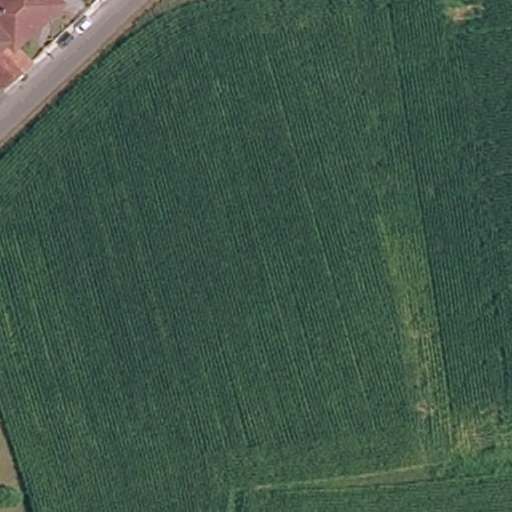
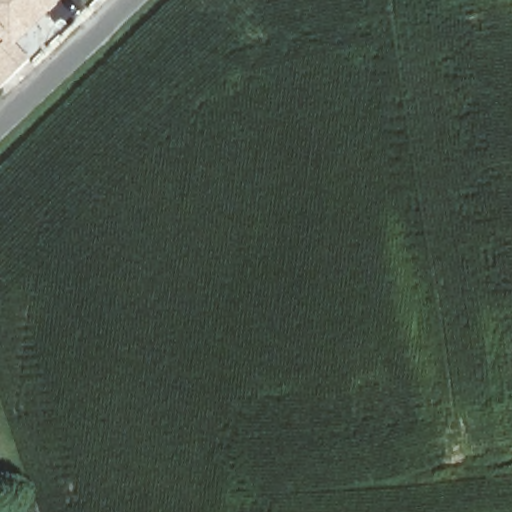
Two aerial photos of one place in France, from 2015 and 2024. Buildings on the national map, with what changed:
unchanged [(2,36),(0,38),(0,0),(59,0),(60,1),(45,16),(15,45),(7,39),(2,36)]
unchanged [(0,88),(0,50),(8,43),(28,60),(0,88)]

